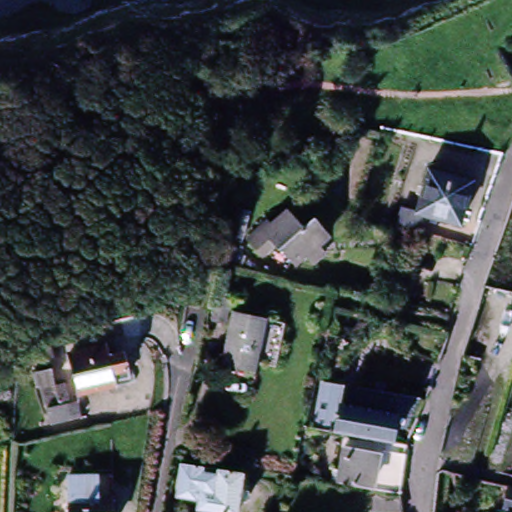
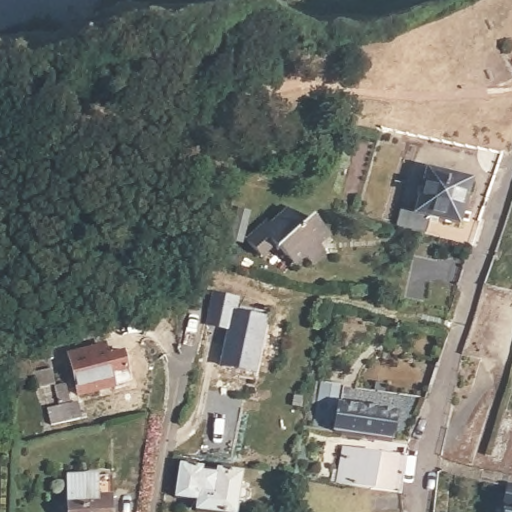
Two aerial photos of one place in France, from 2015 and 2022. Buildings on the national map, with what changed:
unchanged [(395,225),(400,207),(415,210),(427,168),(472,181),(460,225),(429,217),(424,233),(395,225)]
unchanged [(262,225),(266,228),(277,217),(295,233),(303,224),(319,239),(314,245),(320,252),(309,264),(300,256),(290,266),(270,247),(257,259),(242,245),(262,225)]
unchanged [(232,299),(227,325),(210,321),(215,296),(232,299)]
unchanged [(267,322),(255,375),(225,368),(237,316),(267,322)]
unchanged [(50,347),(53,362),(31,367),(28,353),(50,347)]
unchanged [(105,348),(107,361),(123,357),(125,367),(130,366),(135,383),(78,397),(68,357),(105,348)]
unchanged [(52,370),(61,405),(72,405),(76,415),(49,421),(45,403),(39,402),(33,371),(52,370)]
unchanged [(320,377),(343,381),(340,402),(336,428),(312,425),(320,377)]
unchanged [(340,402),(397,411),(392,437),(372,434),(336,428),(340,402)]
unchanged [(372,483),(339,477),(344,445),(369,448),(372,434),(392,437),(408,439),(400,487),(404,508),(370,503),(372,483)]
unchanged [(197,510),(199,500),(175,497),(181,462),(243,472),(240,491),(247,492),(250,496),(249,502),(246,504),(237,502),(236,512),(210,512),(197,510)]
unchanged [(71,498),(70,477),(111,476),(112,497),(112,512),(71,512),(71,498)]
unchanged [(509,486),(512,486),(512,512),(502,512),(509,486)]

